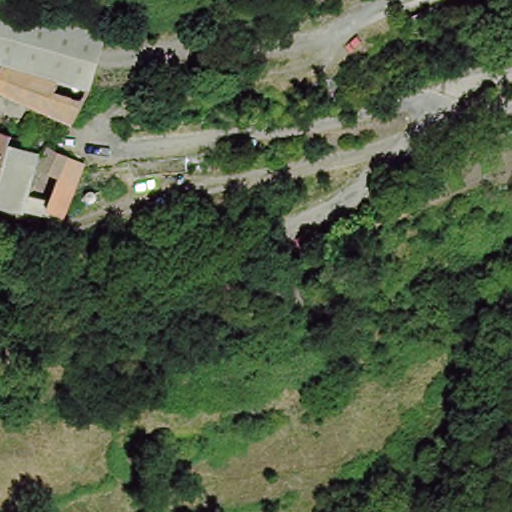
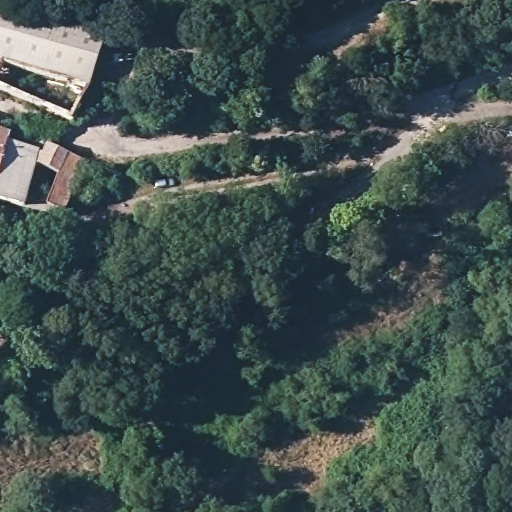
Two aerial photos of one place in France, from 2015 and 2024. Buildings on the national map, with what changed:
unchanged [(107,13),(103,59),(92,109),(3,85),(9,57),(0,56),(0,3),(107,13)]
unchanged [(17,127),(17,135),(70,149),(75,138),(115,149),(92,203),(69,197),(65,205),(4,195),(0,211),(0,122),(17,127)]

